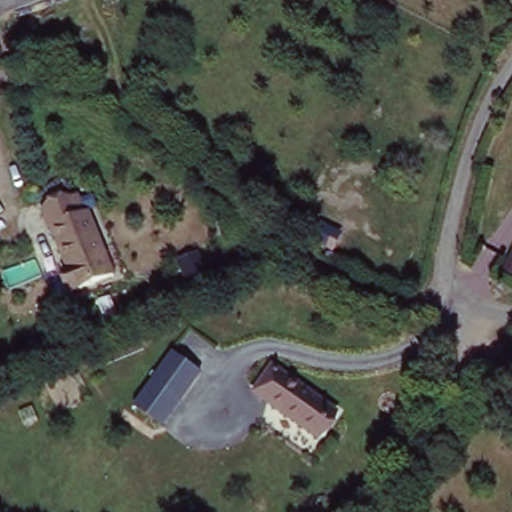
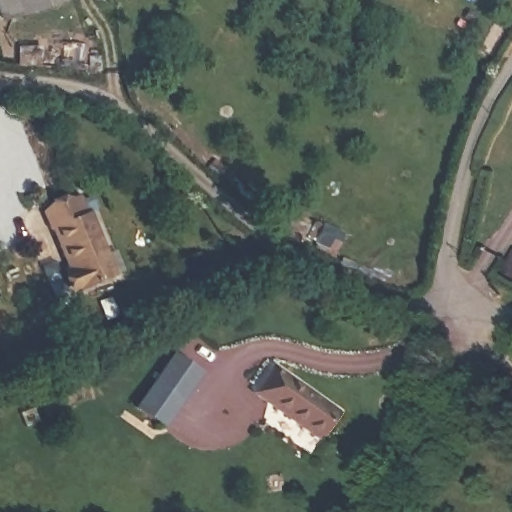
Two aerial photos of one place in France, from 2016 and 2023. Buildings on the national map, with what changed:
unchanged [(3,0),(53,0),(9,15),(3,0)]
unchanged [(82,194),(117,276),(70,296),(56,270),(69,267),(43,204),(82,194)]
unchanged [(305,207),(326,215),(318,234),(298,224),(305,207)]
unchanged [(504,270),(512,255),(512,274),(504,270)]
unchanged [(198,372),(165,417),(136,397),(169,353),(198,372)]
unchanged [(345,411),(323,437),(255,392),(273,363),(345,411)]

